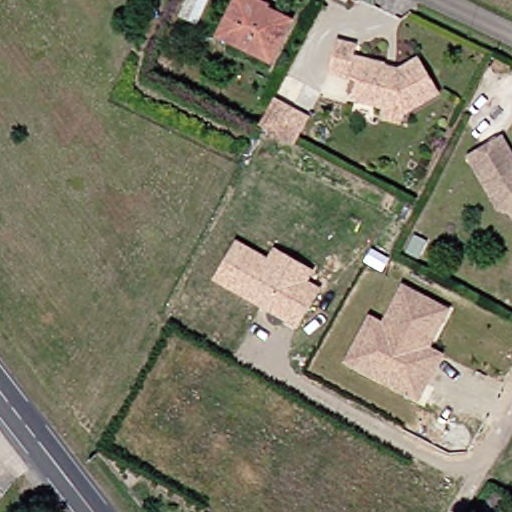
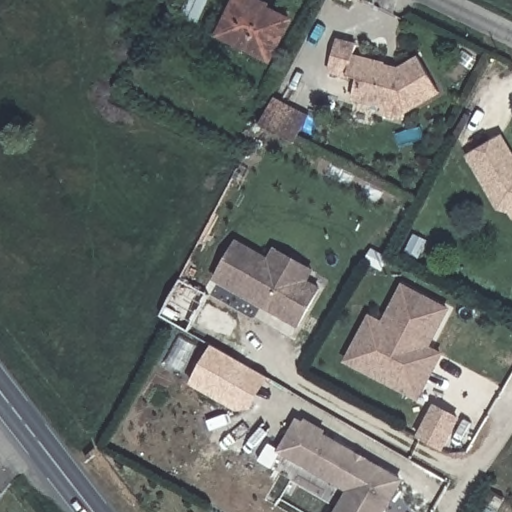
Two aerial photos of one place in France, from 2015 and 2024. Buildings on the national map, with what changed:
unchanged [(248,0),(280,16),(261,55),(209,30),(224,0),(248,0)]
unchanged [(395,113),(393,120),(371,114),(372,107),(342,99),(347,79),(319,72),(327,40),(346,45),(344,56),(375,64),(372,74),(381,77),(381,74),(409,58),(429,92),(395,113)]
unchanged [(310,117),(295,147),(257,127),(270,98),(310,117)]
unchanged [(500,212),(489,209),(458,157),(492,137),(512,171),(512,221),(505,220),(500,212)]
unchanged [(299,327),(213,278),(236,240),(269,257),(274,248),(315,271),(308,282),(321,288),(299,327)]
unchanged [(426,383),(417,399),(360,368),(346,361),(370,317),(383,324),(403,287),(447,310),(427,348),(441,355),(426,383)]
new [(190,384),(212,346),(269,378),(247,416),(190,384)]
new [(434,406),(456,419),(438,450),(416,437),(434,406)]
new [(350,490),(282,451),(298,422),(303,424),(305,420),(325,432),(323,436),(367,462),(396,479),(400,482),(388,502),(383,512),(338,512),(350,490)]
demolished [(497,512),(481,512),(493,491),(505,498),(497,512)]

